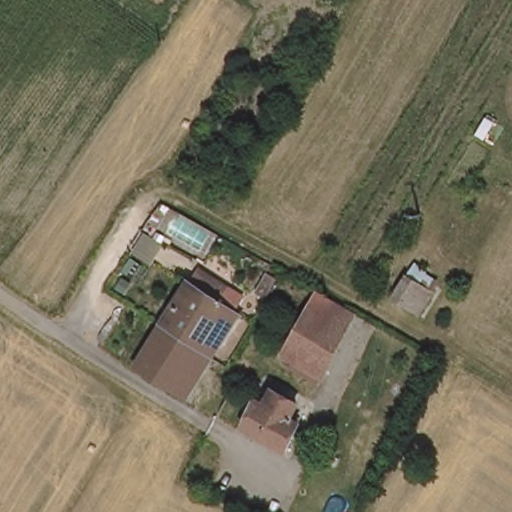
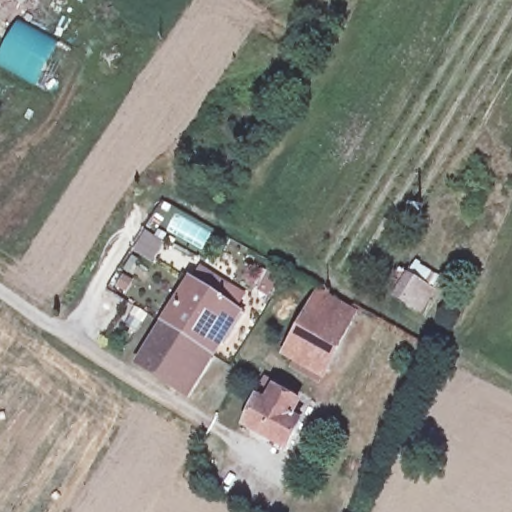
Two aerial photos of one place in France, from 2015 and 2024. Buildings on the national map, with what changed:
new [(0,57),(20,23),(69,52),(47,92),(0,64),(0,57)]
unchanged [(162,325),(197,267),(228,285),(220,298),(240,311),(220,343),(210,337),(202,350),(162,325)]
unchanged [(267,278),(258,294),(246,287),(255,272),(267,278)]
unchanged [(403,298),(414,278),(430,287),(419,308),(403,298)]
unchanged [(285,352),(308,311),(318,292),(350,311),(341,327),(318,370),(285,352)]
unchanged [(202,350),(179,387),(139,362),(162,325),(202,350)]
unchanged [(267,396),(275,401),(282,387),(307,400),(299,413),(310,420),(295,447),(252,423),(267,396)]

